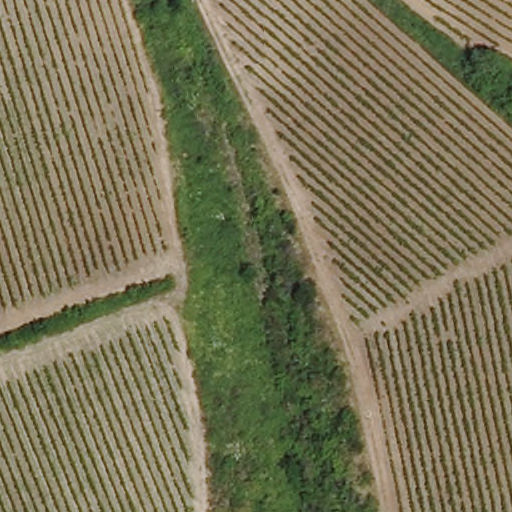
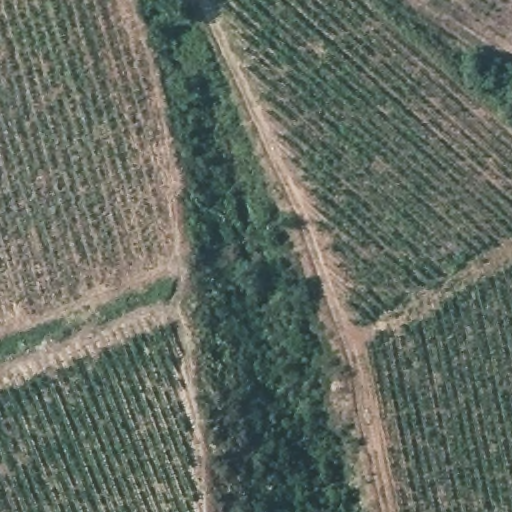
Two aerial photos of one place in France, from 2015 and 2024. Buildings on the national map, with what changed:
unchanged [(507,65),(512,69),(512,89),(510,92),(494,78),(507,65)]

